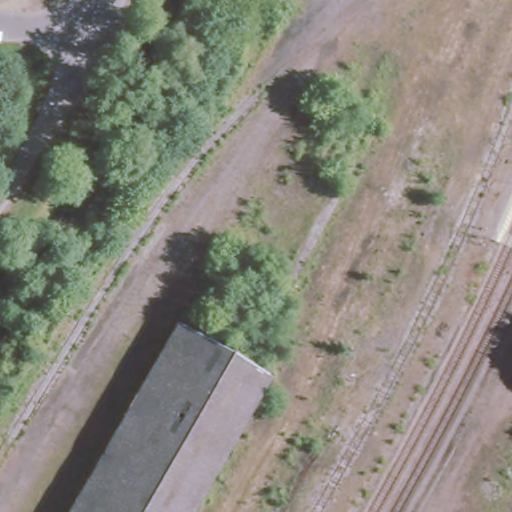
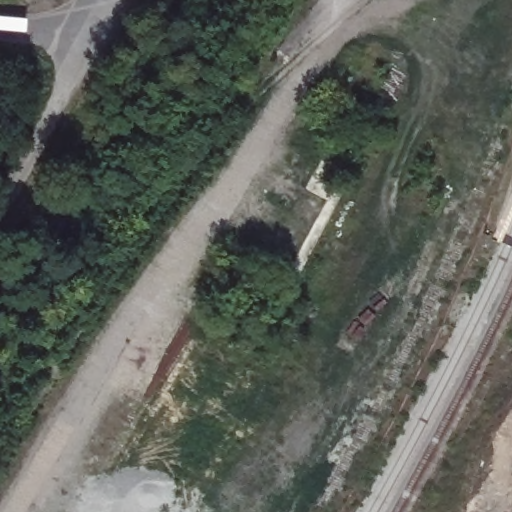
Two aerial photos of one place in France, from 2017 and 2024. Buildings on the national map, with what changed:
demolished [(274,381),(203,512),(74,512),(178,327),(274,381)]

